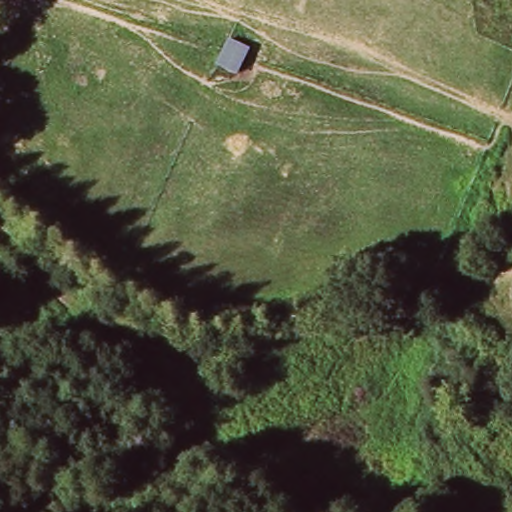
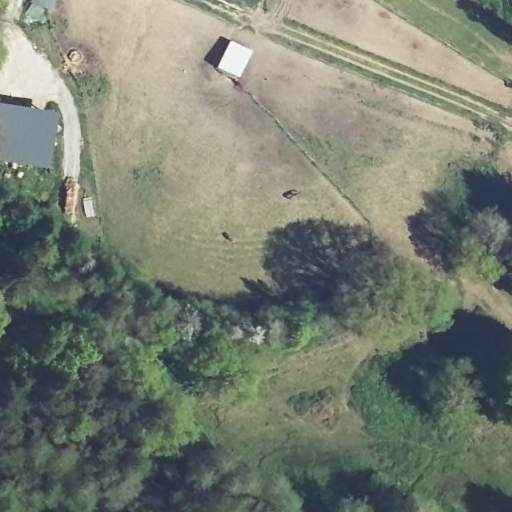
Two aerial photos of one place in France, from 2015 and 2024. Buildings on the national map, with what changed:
new [(41,112),(41,110),(55,112),(48,168),(0,163),(0,104),(41,112)]

